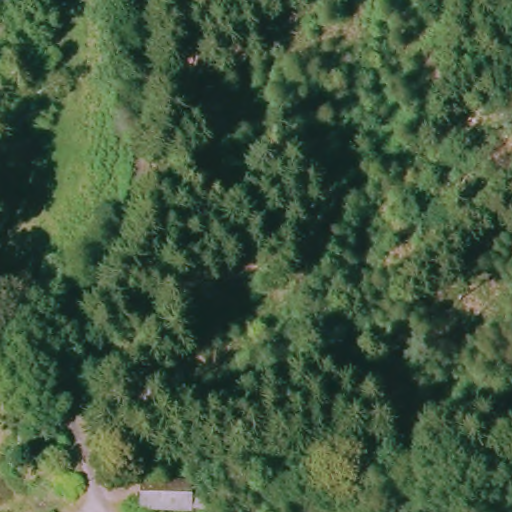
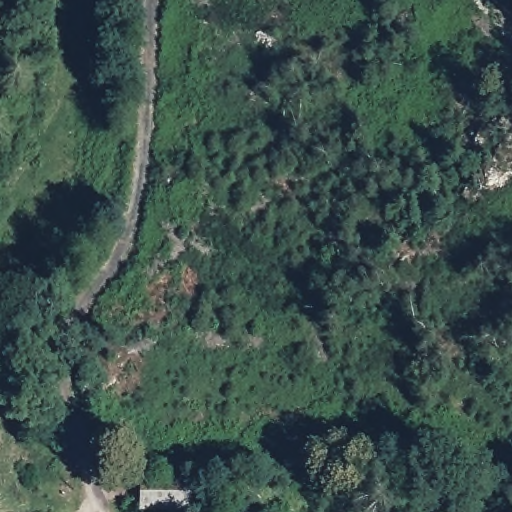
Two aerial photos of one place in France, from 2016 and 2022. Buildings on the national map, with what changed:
unchanged [(197,512),(181,512),(149,512),(148,485),(197,484),(197,512)]

